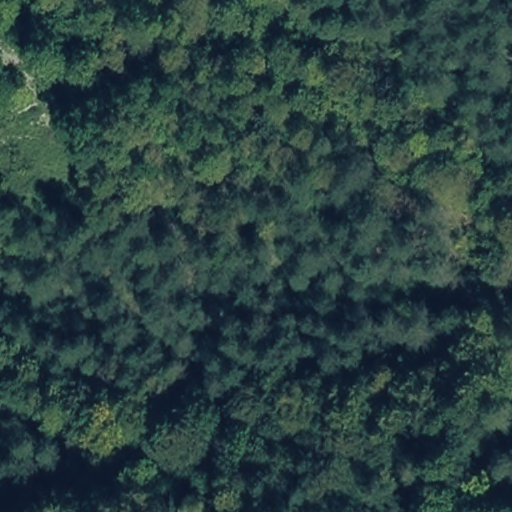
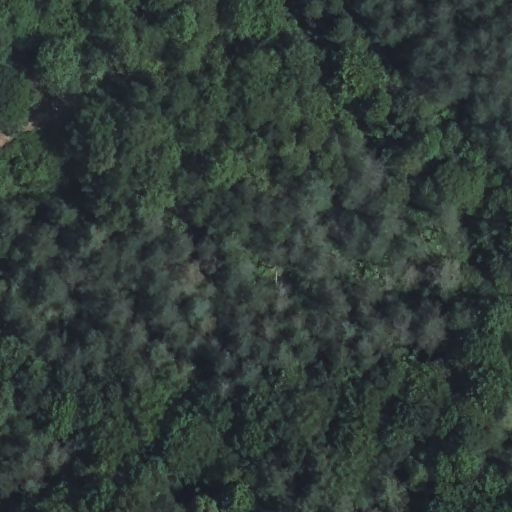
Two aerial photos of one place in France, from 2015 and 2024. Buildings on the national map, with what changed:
[]

